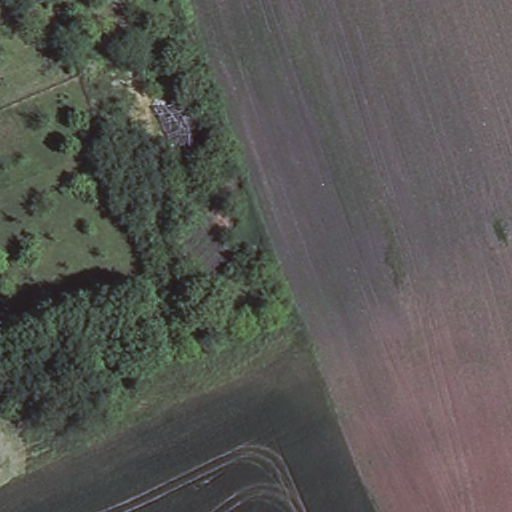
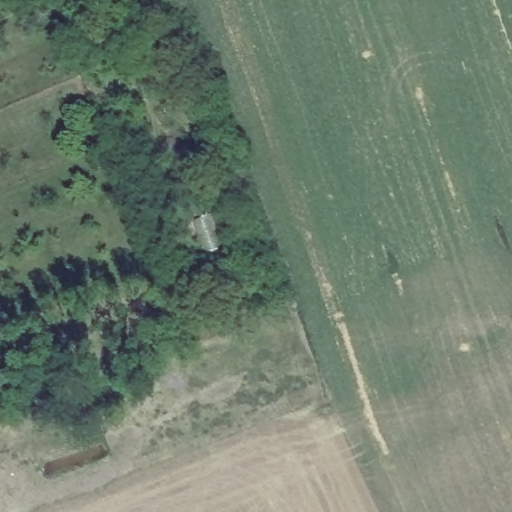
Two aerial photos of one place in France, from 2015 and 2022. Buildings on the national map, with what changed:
unchanged [(163,207),(135,216),(123,186),(153,177),(163,207)]

